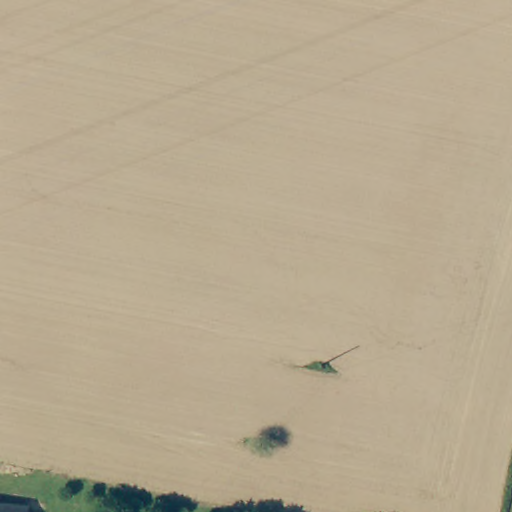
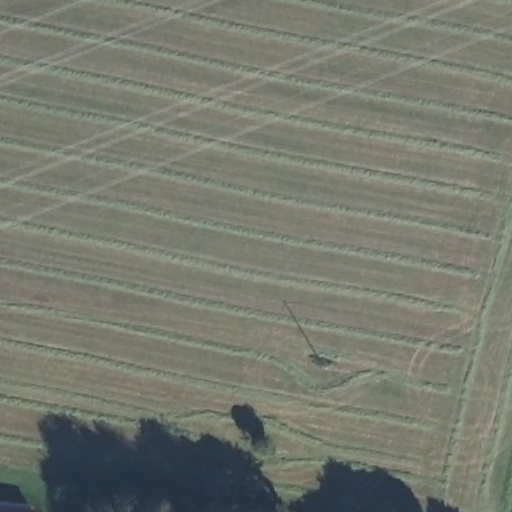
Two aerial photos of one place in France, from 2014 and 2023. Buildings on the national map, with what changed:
unchanged [(21,506),(20,512),(0,512),(0,504),(21,506)]

